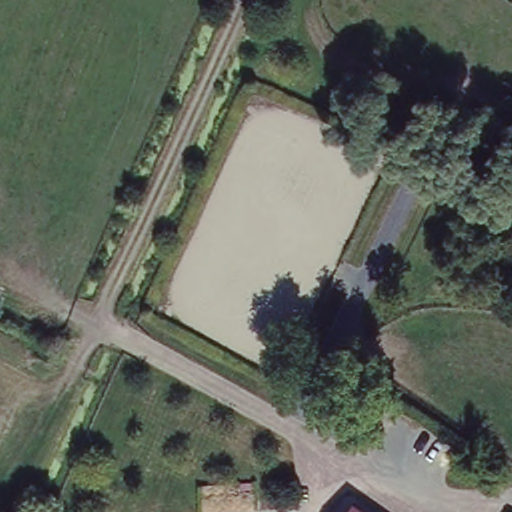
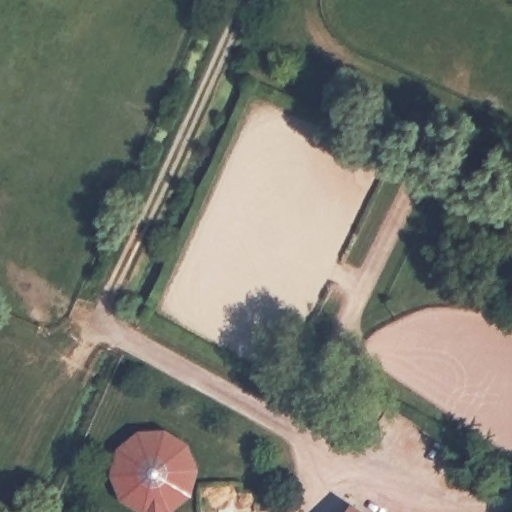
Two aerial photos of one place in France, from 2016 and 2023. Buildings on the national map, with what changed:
new [(204,479),(201,488),(196,495),(191,502),(184,508),(177,512),(142,512),(135,508),(128,502),(122,495),(118,488),(115,479),(115,471),(115,462),(118,454),(122,446),(128,439),(135,434),(142,429),(151,427),(160,426),(168,427),(176,429),(184,434),(191,439),(196,446),(201,454),(204,462),(204,471),(204,479)]
unchanged [(353,504),(364,512),(348,512),(353,504)]

